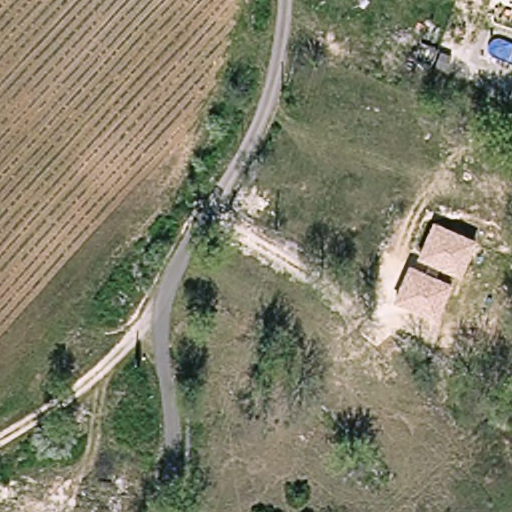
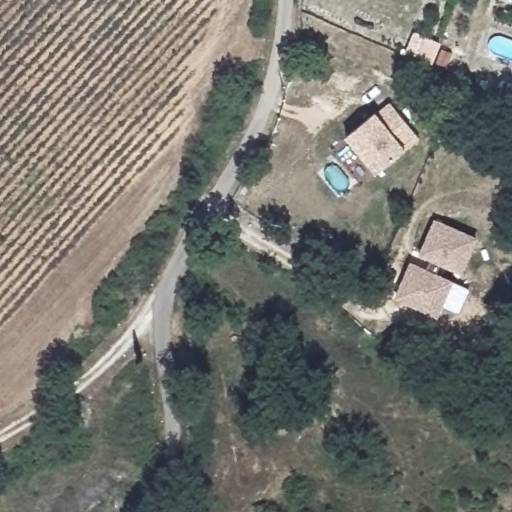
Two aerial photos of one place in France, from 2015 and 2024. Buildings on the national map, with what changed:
new [(389,102),(420,139),(406,150),(375,174),(345,137),(376,111),(389,102)]
unchanged [(417,255),(433,219),(478,239),(462,276),(441,267),(438,274),(454,281),(437,318),(396,299),(409,264),(424,270),(427,262),(417,255)]

